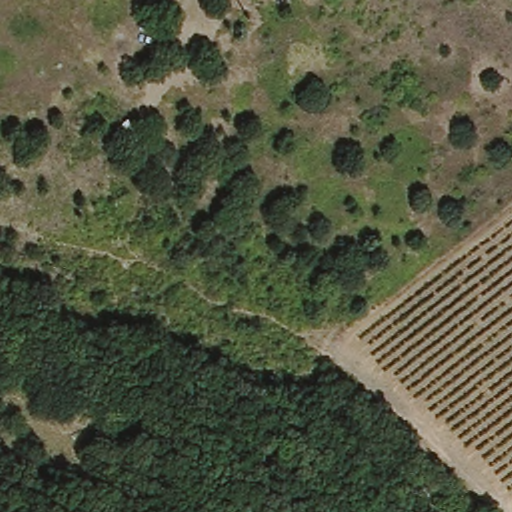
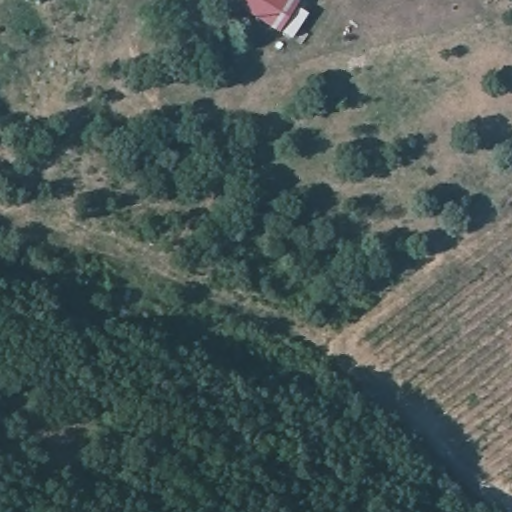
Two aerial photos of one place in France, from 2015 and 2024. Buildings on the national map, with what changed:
new [(237,0),(292,0),(275,26),(237,1),(237,0)]
demolished [(292,5),(282,1),(280,0),(294,0),(292,5)]

